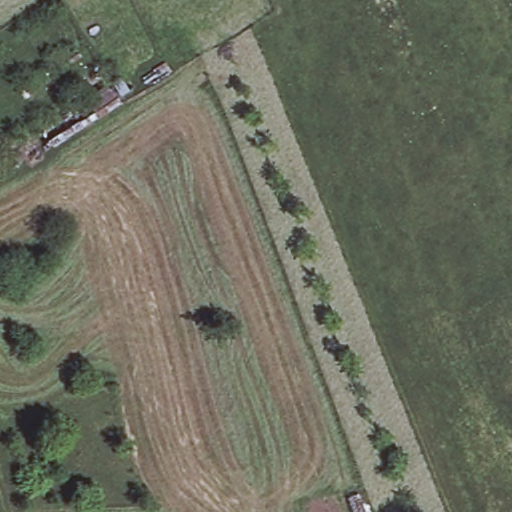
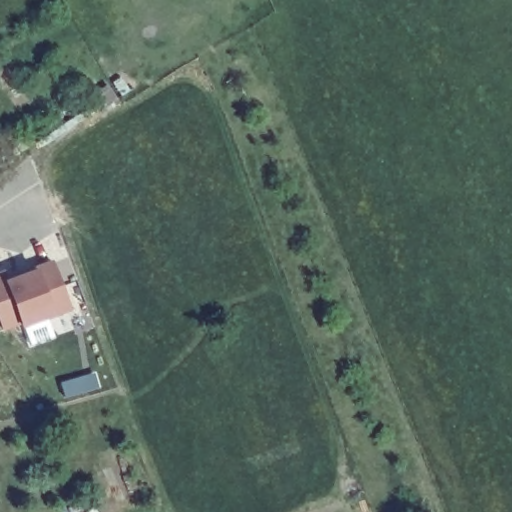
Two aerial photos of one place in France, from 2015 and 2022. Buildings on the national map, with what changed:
new [(7,270),(10,280),(39,270),(37,266),(55,260),(74,312),(25,331),(22,322),(4,330),(0,321),(0,273),(7,270)]

